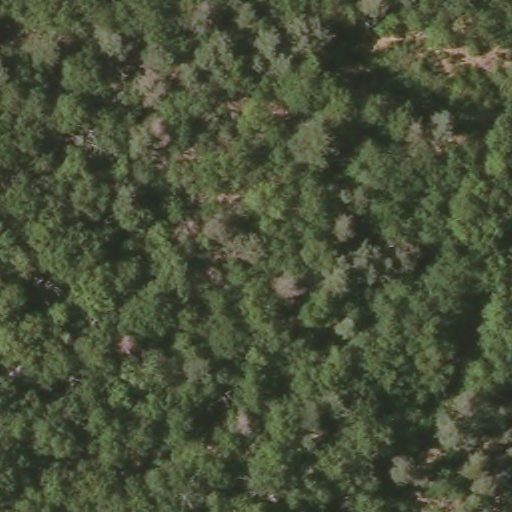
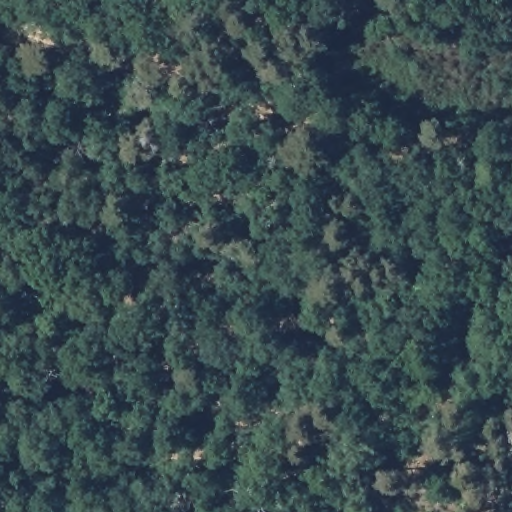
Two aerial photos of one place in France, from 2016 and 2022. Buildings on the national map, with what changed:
[]

